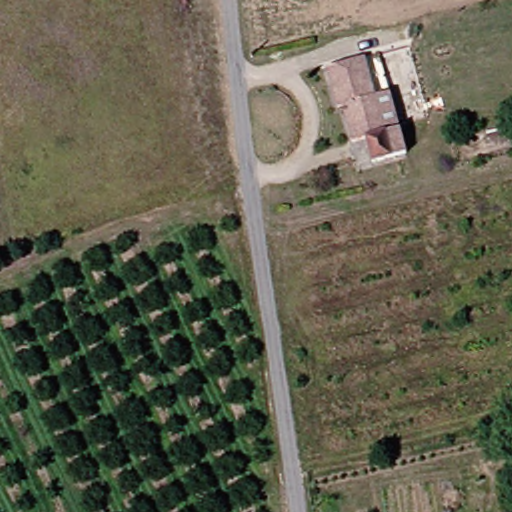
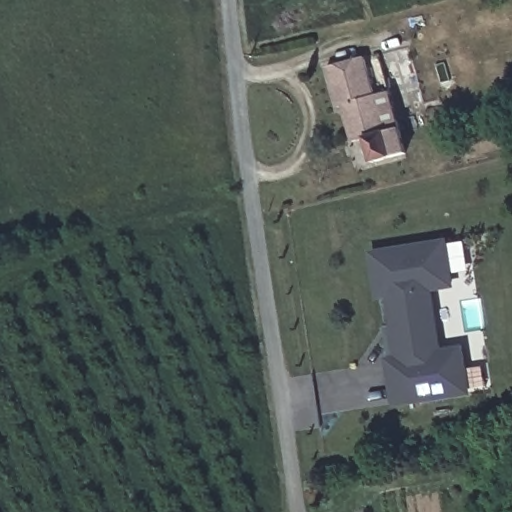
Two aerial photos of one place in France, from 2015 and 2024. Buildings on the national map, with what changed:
unchanged [(385,99),(397,97),(413,156),(379,166),(373,142),(358,145),(348,111),(343,111),(332,71),(377,61),(385,99)]
new [(386,358),(397,357),(387,300),(377,302),(370,252),(450,241),(456,288),(435,292),(442,350),(466,346),(473,395),(393,406),(386,358)]

